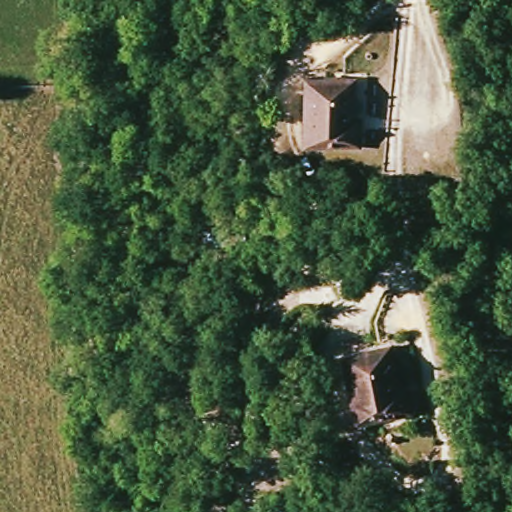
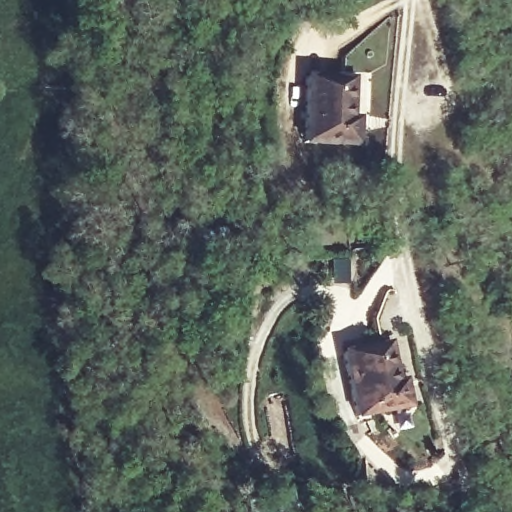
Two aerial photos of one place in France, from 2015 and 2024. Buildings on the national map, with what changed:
unchanged [(360,131),(360,144),(306,146),(305,79),(348,78),(349,114),(360,114),(360,131)]
unchanged [(347,354),(391,344),(405,408),(361,417),(347,354)]

